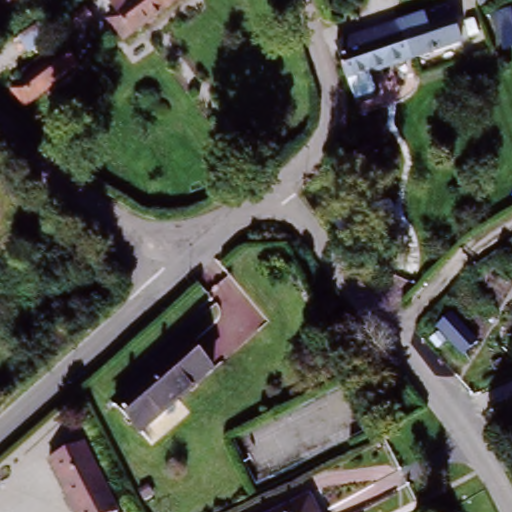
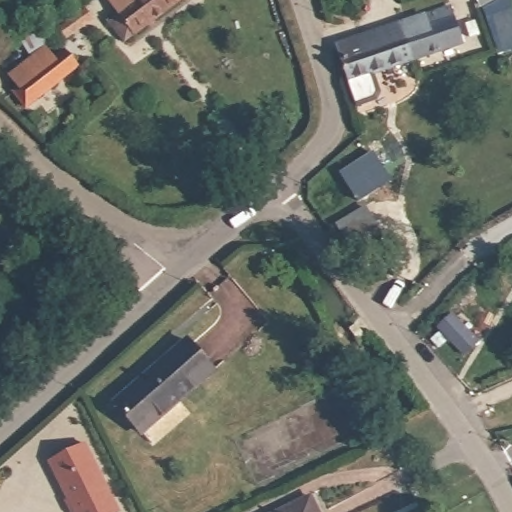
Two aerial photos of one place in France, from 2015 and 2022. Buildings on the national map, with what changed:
unchanged [(125,48),(97,21),(61,44),(32,65),(7,30),(46,20),(97,0),(187,0),(125,48)]
unchanged [(400,22),(452,7),(462,39),(412,54),(400,22)]
unchanged [(359,95),(352,76),(339,42),(400,22),(412,54),(371,69),(377,85),(375,90),(359,95)]
unchanged [(27,110),(6,85),(32,65),(61,44),(80,67),(27,110)]
demolished [(397,192),(365,215),(335,166),(370,144),(397,192)]
unchanged [(475,343),(459,359),(432,331),(452,314),(475,343)]
unchanged [(367,332),(357,340),(350,331),(360,322),(367,332)]
unchanged [(212,375),(140,434),(115,406),(188,347),(212,375)]
unchanged [(55,460),(90,445),(122,512),(80,512),(55,460)]
unchanged [(312,494),(319,512),(275,512),(312,494)]

